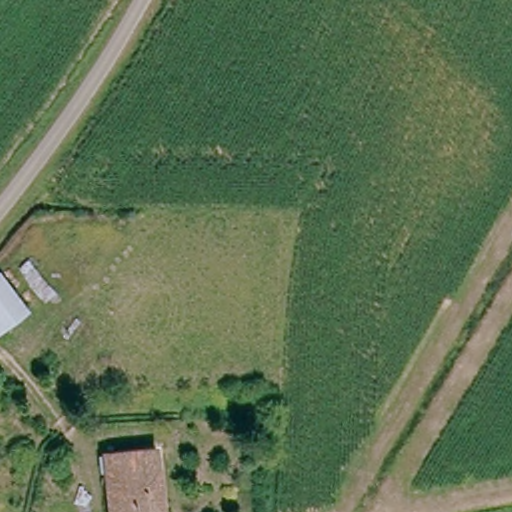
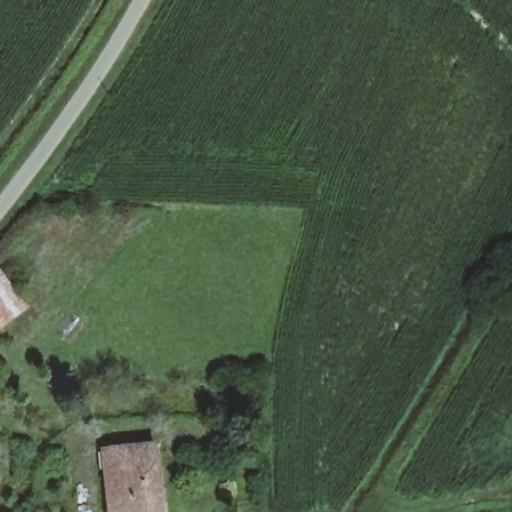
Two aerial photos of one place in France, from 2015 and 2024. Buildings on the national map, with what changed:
unchanged [(3,334),(0,331),(0,280),(29,302),(3,334)]
unchanged [(102,456),(151,447),(162,512),(112,512),(102,456)]

